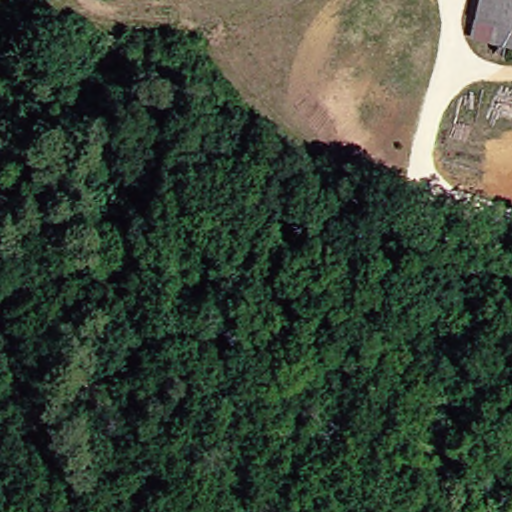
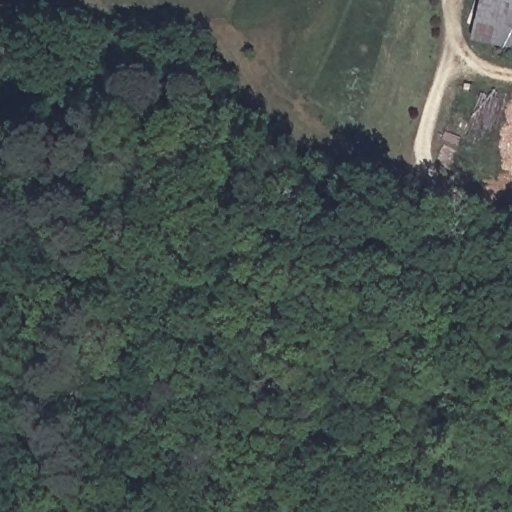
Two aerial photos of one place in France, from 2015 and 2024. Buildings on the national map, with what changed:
unchanged [(481,0),(512,0),(512,46),(471,37),(481,0)]

